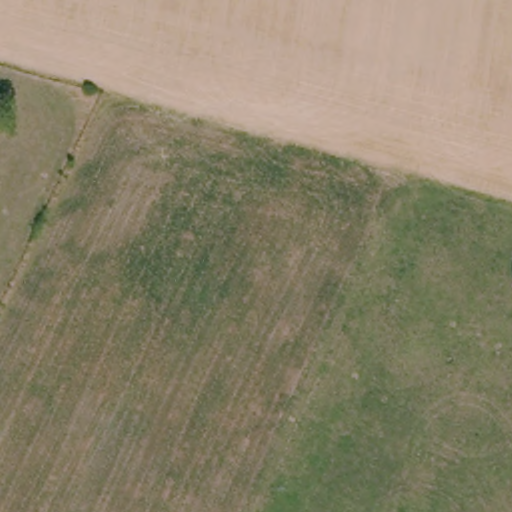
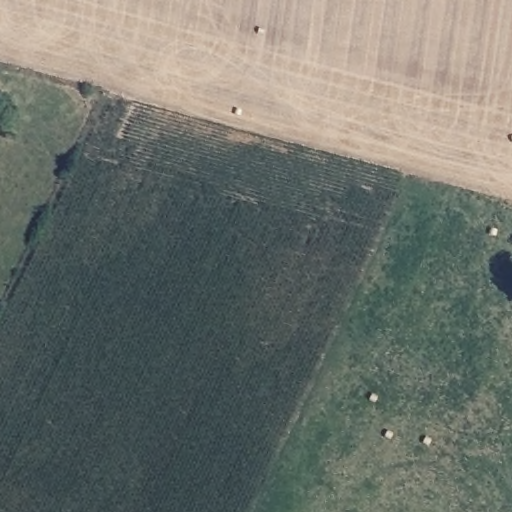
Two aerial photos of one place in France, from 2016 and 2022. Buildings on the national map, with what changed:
[]

